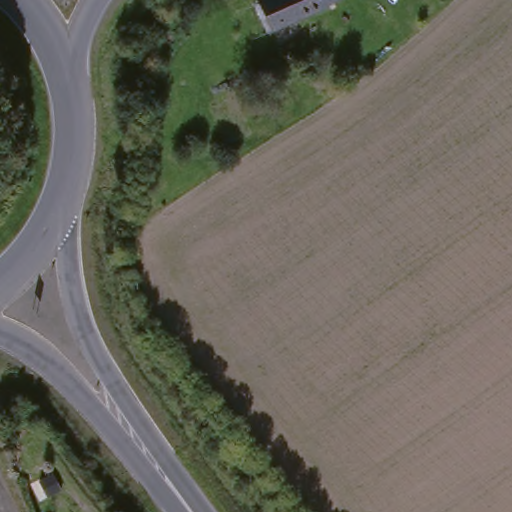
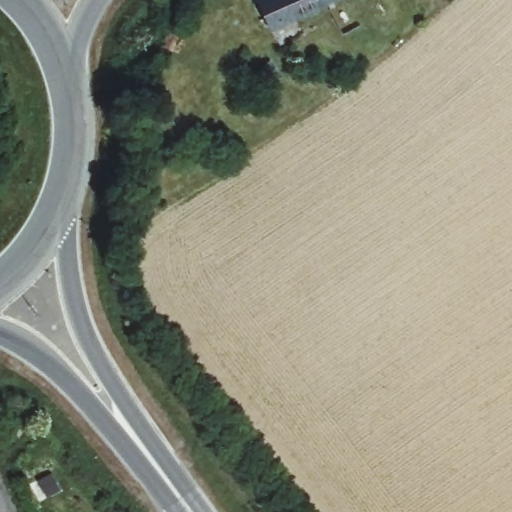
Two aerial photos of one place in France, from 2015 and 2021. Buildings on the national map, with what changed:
unchanged [(269,26),(258,0),(321,0),(322,2),(269,26)]

